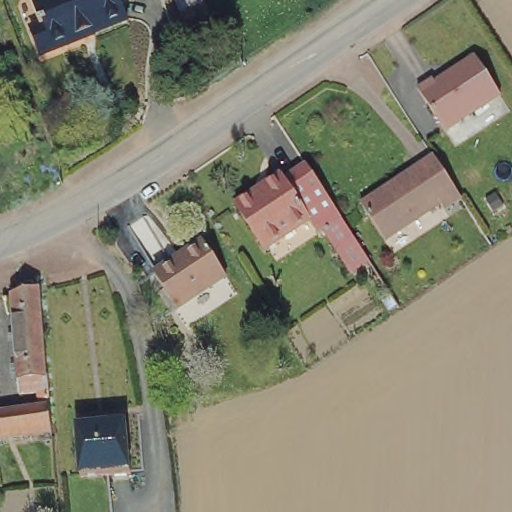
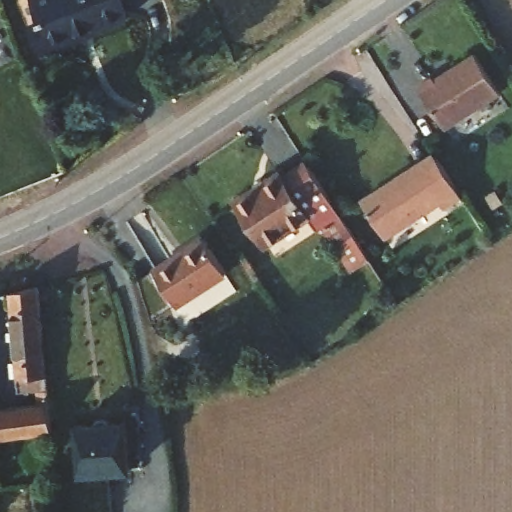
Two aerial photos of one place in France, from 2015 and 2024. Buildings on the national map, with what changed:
unchanged [(38,0),(120,0),(127,19),(38,50),(29,23),(43,18),(38,0)]
unchanged [(436,78),(438,80),(450,74),(452,77),(459,73),(457,70),(480,57),(502,98),(445,129),(420,85),(436,78)]
unchanged [(378,190),(379,192),(438,160),(461,203),(443,213),(440,207),(380,238),(360,200),(378,190)]
unchanged [(255,186),(257,190),(282,175),(283,177),(311,162),(367,261),(345,272),(322,228),(317,230),(311,217),(263,243),(237,196),(255,186)]
unchanged [(200,235),(220,272),(172,299),(152,263),(200,235)]
unchanged [(0,436),(0,405),(34,402),(32,378),(15,379),(7,293),(40,287),(52,432),(0,436)]
unchanged [(75,429),(120,424),(126,473),(81,479),(75,429)]

